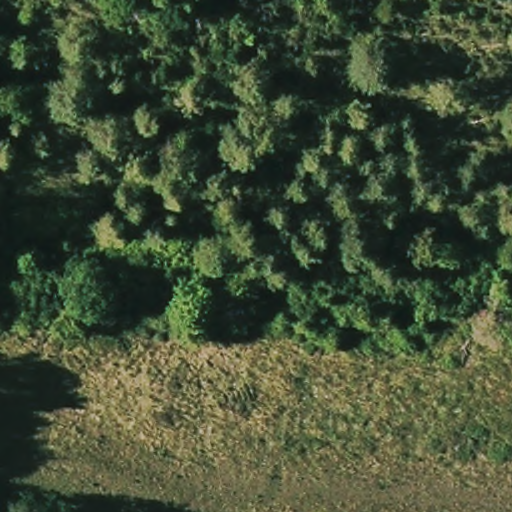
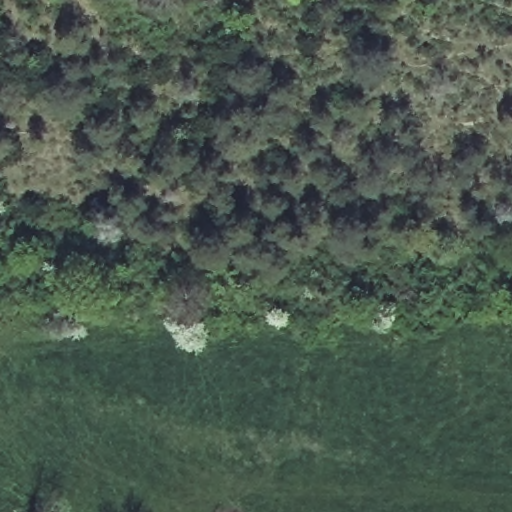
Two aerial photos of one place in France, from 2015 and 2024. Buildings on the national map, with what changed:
[]

